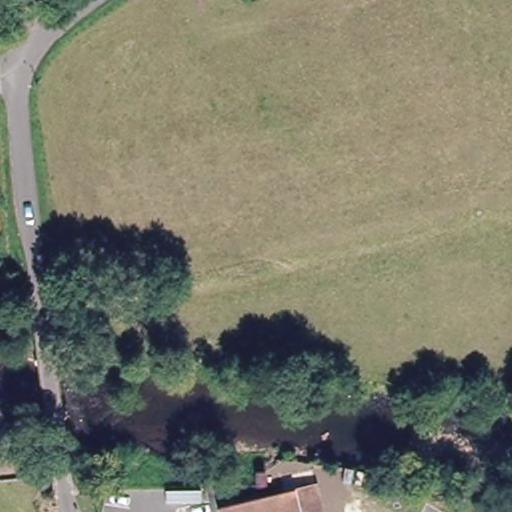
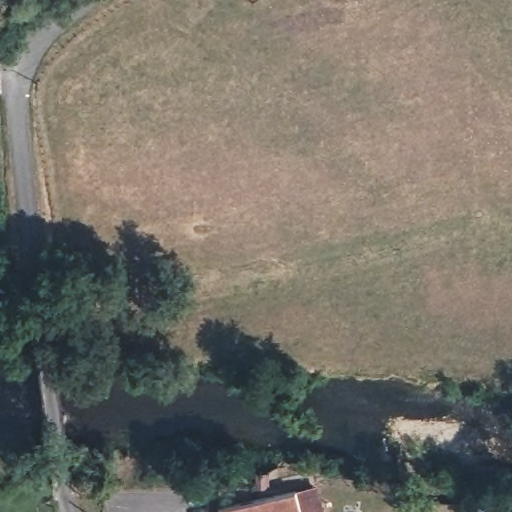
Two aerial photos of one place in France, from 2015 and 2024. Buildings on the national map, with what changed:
unchanged [(290,492),(309,488),(315,512),(213,512),(212,510),(290,492)]

